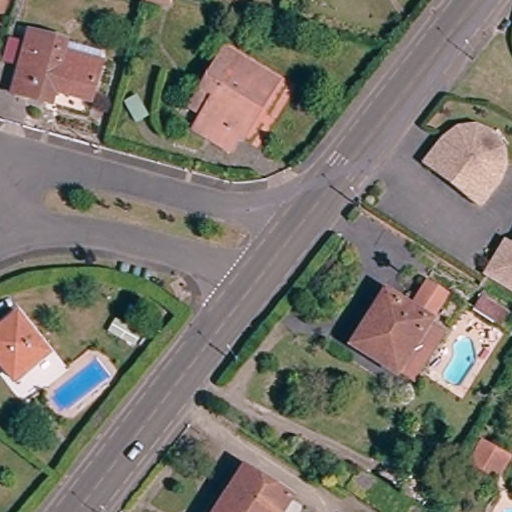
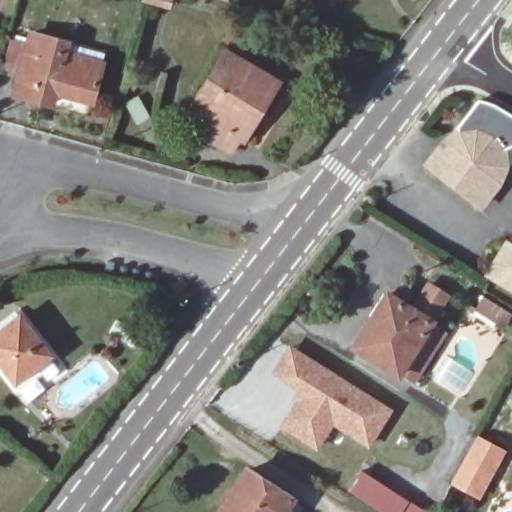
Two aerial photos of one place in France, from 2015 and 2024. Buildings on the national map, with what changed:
unchanged [(175,3),(161,0),(176,0),(175,3)]
unchanged [(230,2),(221,0),(231,0),(230,2)]
unchanged [(30,33),(69,45),(66,54),(103,64),(93,103),(57,93),(53,106),(13,95),(30,33)]
unchanged [(225,51),(279,83),(261,113),(258,111),(233,153),(195,131),(204,115),(191,107),(225,51)]
unchanged [(137,95),(151,117),(138,125),(124,104),(137,95)]
unchanged [(466,137),(484,134),(500,141),(511,155),(512,159),(512,178),(508,189),(491,211),(436,170),(453,148),(466,137)]
unchanged [(508,245),(512,247),(512,290),(489,275),(508,245)]
unchanged [(432,287),(451,299),(437,320),(450,329),(417,383),(405,374),(400,380),(348,348),(385,287),(419,308),(432,287)]
unchanged [(482,297),(510,316),(502,329),(474,310),(482,297)]
unchanged [(37,368),(32,362),(11,379),(0,365),(0,331),(0,323),(15,310),(19,315),(51,356),(37,368)]
unchanged [(143,333),(135,346),(109,331),(117,318),(143,333)]
new [(369,447),(333,425),(318,449),(281,426),(295,404),(290,400),(294,391),(270,374),(289,346),(391,410),(369,447)]
unchanged [(485,448),(498,455),(483,482),(470,474),(485,448)]
unchanged [(342,461),(421,512),(383,512),(332,480),(342,461)]
unchanged [(244,471),(290,500),(282,512),(218,512),(220,509),(244,471)]

